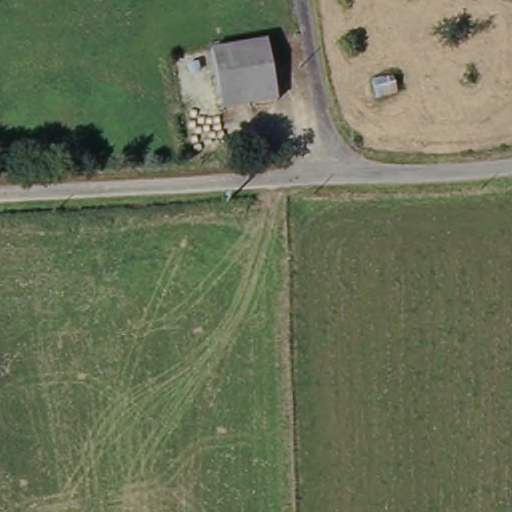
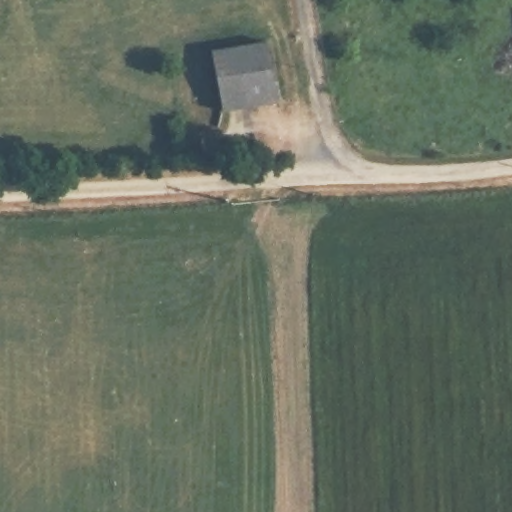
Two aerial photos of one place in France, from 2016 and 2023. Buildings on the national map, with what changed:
unchanged [(216,61),(270,49),(280,92),(225,103),(216,61)]
unchanged [(381,74),(397,72),(399,87),(383,89),(381,74)]

